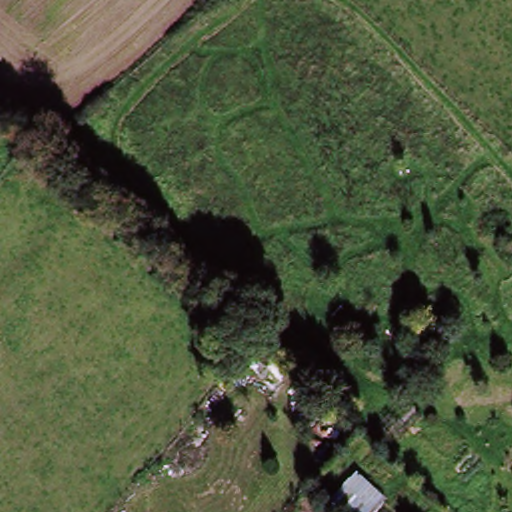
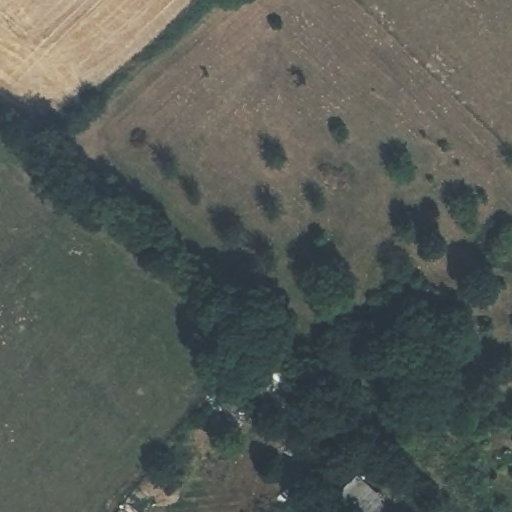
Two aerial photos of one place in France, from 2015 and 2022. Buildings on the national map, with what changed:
unchanged [(330,507),(363,474),(393,501),(383,512),(337,512),(330,507)]

